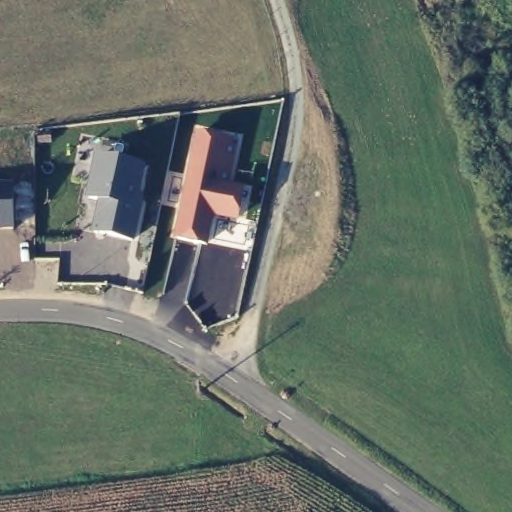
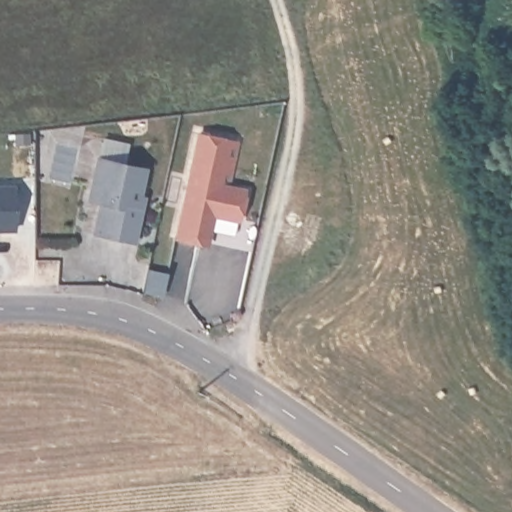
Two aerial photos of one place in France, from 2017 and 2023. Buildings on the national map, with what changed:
unchanged [(172,241),(197,132),(237,140),(227,185),(245,189),(237,221),(215,217),(208,247),(172,241)]
unchanged [(134,240),(91,233),(97,202),(85,200),(94,157),(145,168),(139,196),(145,196),(134,240)]
unchanged [(0,184),(14,184),(14,231),(0,231),(0,184)]

